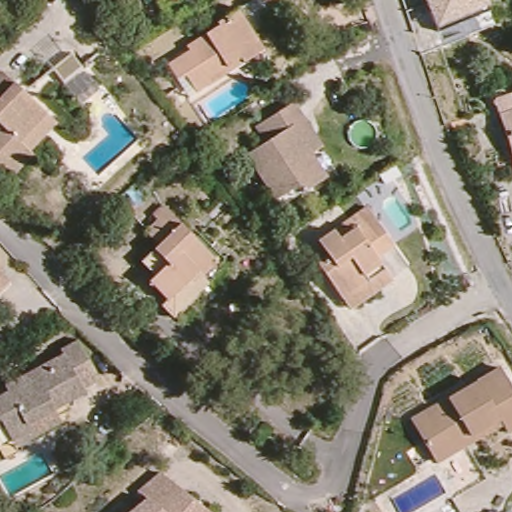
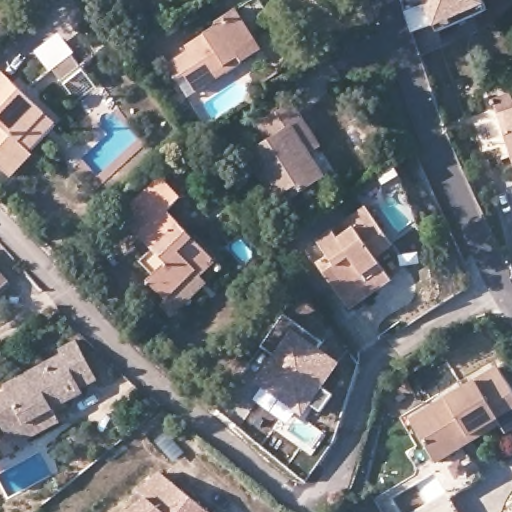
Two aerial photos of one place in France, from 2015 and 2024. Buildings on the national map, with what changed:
unchanged [(426,0),(486,0),(490,16),(440,36),(426,0)]
unchanged [(223,81),(200,95),(189,79),(181,84),(171,67),(192,54),(190,49),(222,29),(221,25),(242,13),(261,44),(267,54),(223,81)]
unchanged [(68,49),(80,63),(63,77),(51,65),(68,49)]
unchanged [(33,149),(37,153),(13,175),(0,162),(0,73),(5,69),(48,113),(60,124),(33,149)]
unchanged [(512,93),(512,155),(493,99),(512,93)]
unchanged [(305,192),(300,185),(278,199),(251,154),(270,143),(259,125),(267,120),(296,102),(307,119),(325,147),(314,154),(328,177),(305,192)]
unchanged [(348,309),(341,299),(317,262),(328,255),(317,239),(333,228),(348,218),(365,205),(392,245),(376,257),(385,269),(390,279),(348,309)]
unchanged [(182,310),(170,297),(151,278),(156,273),(144,259),(160,244),(148,229),(170,209),(219,260),(226,269),(182,310)]
unchanged [(15,281),(0,294),(0,263),(15,281)]
new [(323,342),(318,351),(336,364),(321,386),(333,396),(321,414),(315,409),(305,424),(295,416),(288,426),(255,399),(261,387),(258,383),(275,360),(258,349),(281,311),(323,342)]
unchanged [(5,394),(2,388),(60,358),(57,354),(75,344),(96,385),(80,394),(81,398),(52,413),(59,427),(13,452),(7,442),(0,446),(0,397),(5,394)]
unchanged [(436,458),(410,413),(497,363),(512,388),(512,423),(505,427),(501,420),(467,440),(485,473),(455,490),(436,458)]
unchanged [(141,499),(133,492),(157,472),(208,512),(122,512),(141,499)]
unchanged [(449,494),(459,512),(419,512),(449,494)]

